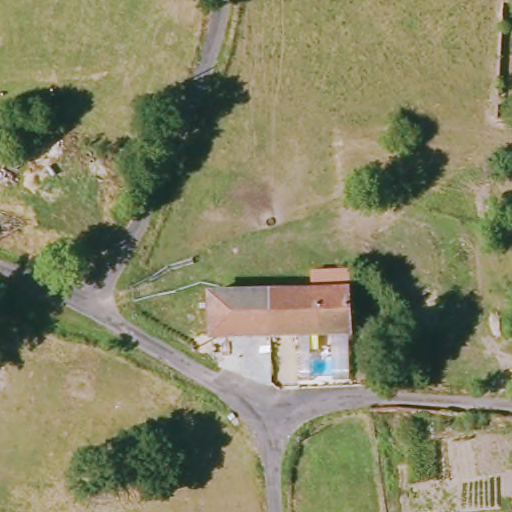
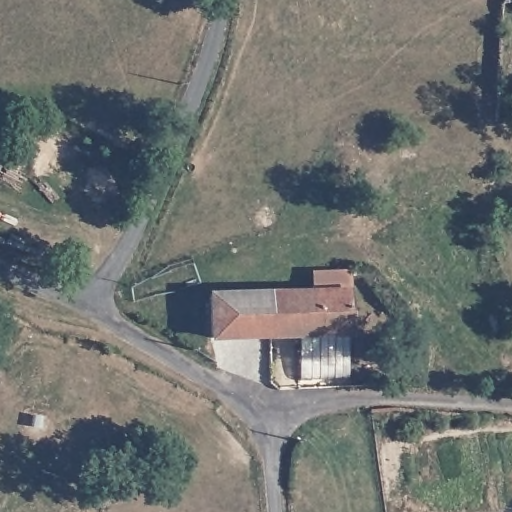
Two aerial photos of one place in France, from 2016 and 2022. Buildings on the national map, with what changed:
unchanged [(211,338),(210,295),(312,291),(313,275),(348,273),(351,335),(349,335),(299,336),(211,338)]
unchanged [(349,335),(351,380),(300,381),(299,336),(349,335)]

